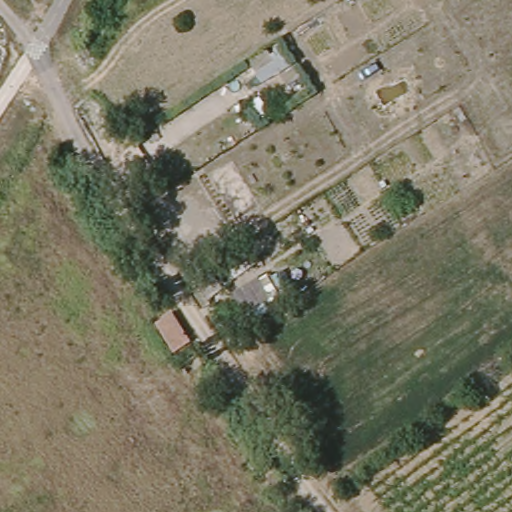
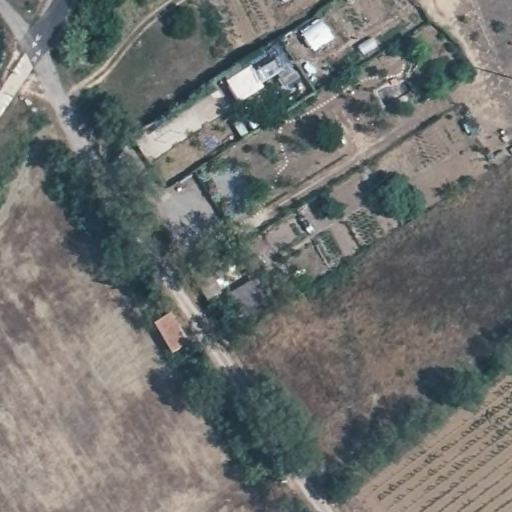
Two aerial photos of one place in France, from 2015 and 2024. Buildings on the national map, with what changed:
unchanged [(307,84),(290,93),(280,74),(298,65),(307,84)]
unchanged [(243,314),(226,286),(234,279),(231,269),(248,258),(258,271),(268,270),(286,292),(243,314)]
unchanged [(191,342),(173,353),(156,324),(173,314),(191,342)]

